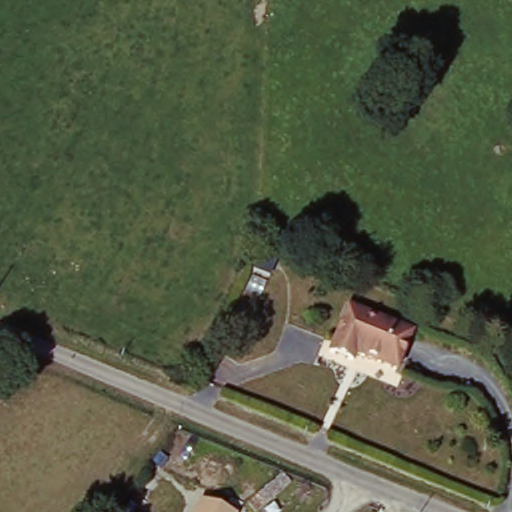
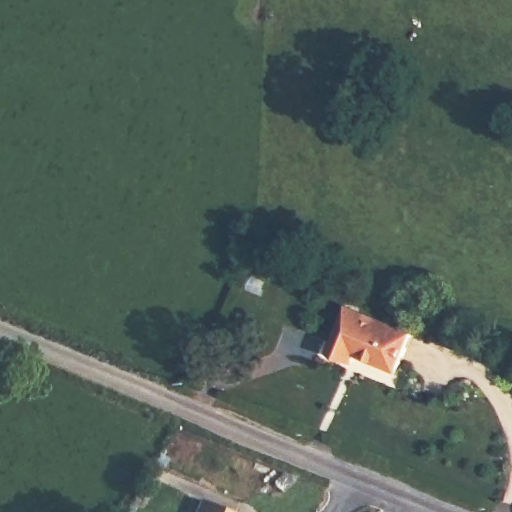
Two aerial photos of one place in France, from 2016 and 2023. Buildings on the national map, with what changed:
unchanged [(417,334),(401,372),(360,355),(357,363),(334,353),(352,308),(417,334)]
unchanged [(199,502),(223,512),(195,512),(199,502)]

